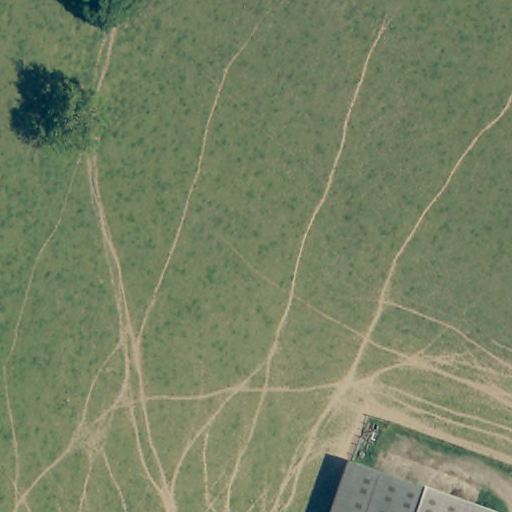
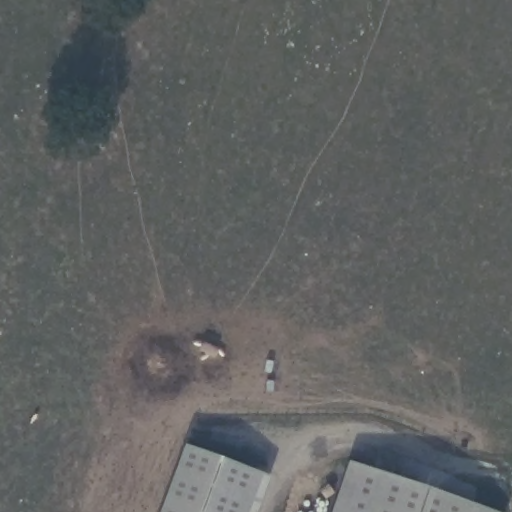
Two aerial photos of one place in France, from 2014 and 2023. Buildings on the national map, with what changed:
new [(159,512),(184,445),(270,478),(257,512),(159,512)]
unchanged [(486,512),(332,512),(345,469),(486,512)]

